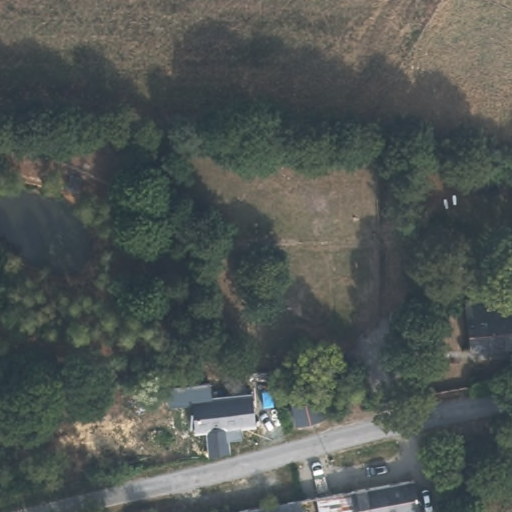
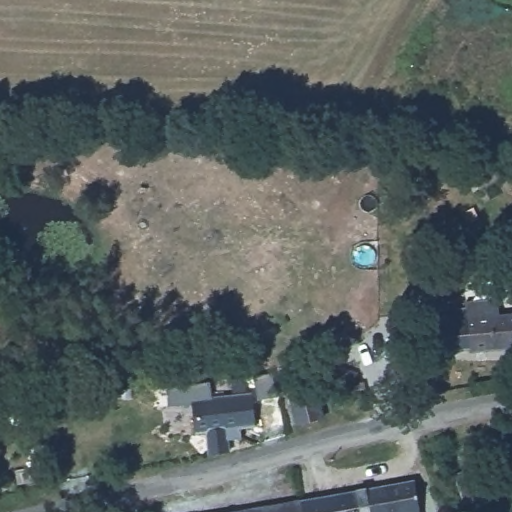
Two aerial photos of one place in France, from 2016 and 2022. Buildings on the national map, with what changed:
unchanged [(481,295),(484,313),(512,311),(512,343),(454,350),(447,298),(481,295)]
unchanged [(393,326),(393,313),(407,311),(407,325),(393,326)]
unchanged [(314,385),(323,421),(296,426),(288,390),(314,385)]
unchanged [(206,431),(197,431),(193,397),(251,391),(254,426),(242,427),(242,436),(230,438),(231,447),(209,450),(206,431)]
unchanged [(477,467),(486,500),(461,506),(453,475),(477,467)]
unchanged [(319,498),(413,482),(418,512),(322,512),(319,498)]
unchanged [(303,512),(235,512),(301,500),(303,512)]

